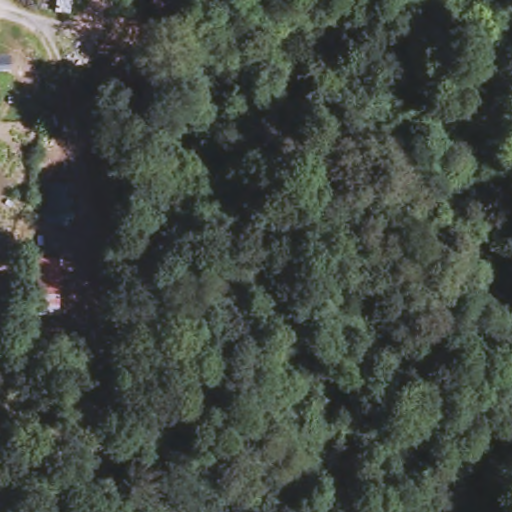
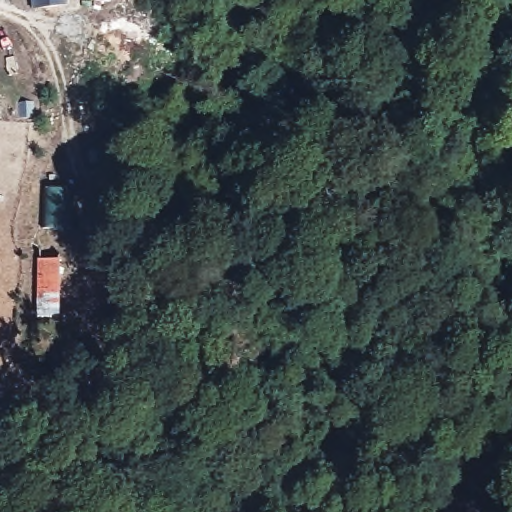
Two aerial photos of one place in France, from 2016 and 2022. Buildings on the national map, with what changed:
unchanged [(73,187),(71,228),(45,227),(48,187),(73,187)]
unchanged [(58,322),(36,321),(35,260),(57,259),(58,322)]

